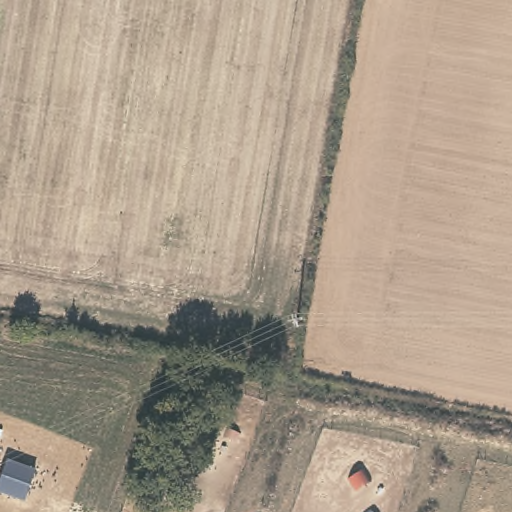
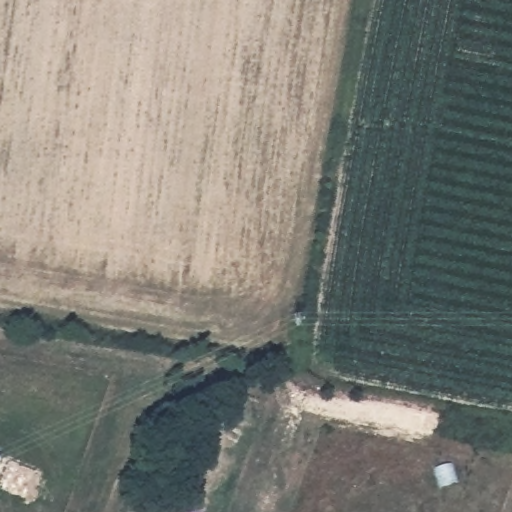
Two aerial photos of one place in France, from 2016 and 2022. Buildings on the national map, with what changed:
unchanged [(24,502),(0,494),(0,479),(6,461),(34,470),(24,502)]

